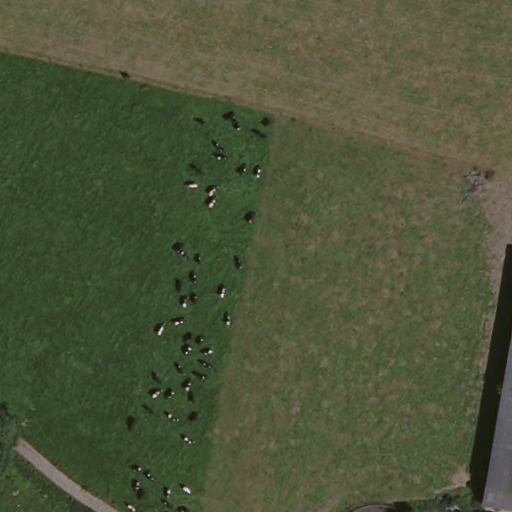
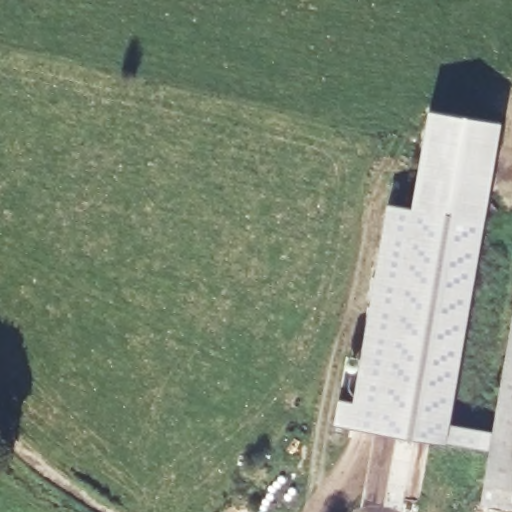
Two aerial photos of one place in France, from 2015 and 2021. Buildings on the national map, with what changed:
new [(492,449),(447,443),(335,423),(337,400),(354,403),(387,204),(412,208),(429,110),(502,121),(450,425),(494,433),(492,449)]
unchanged [(512,304),(512,463),(490,461),(512,304)]
unchanged [(490,461),(512,463),(512,512),(483,512),(490,461)]

